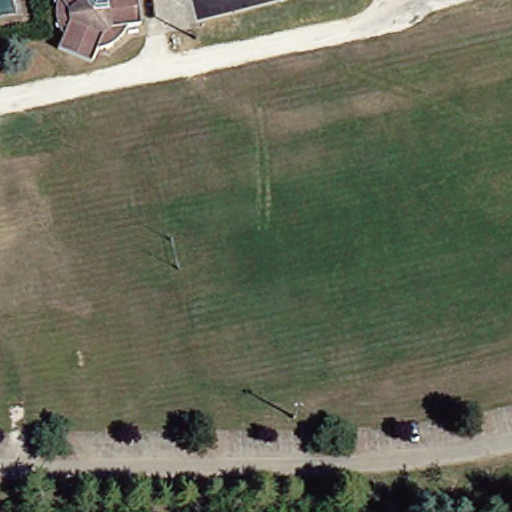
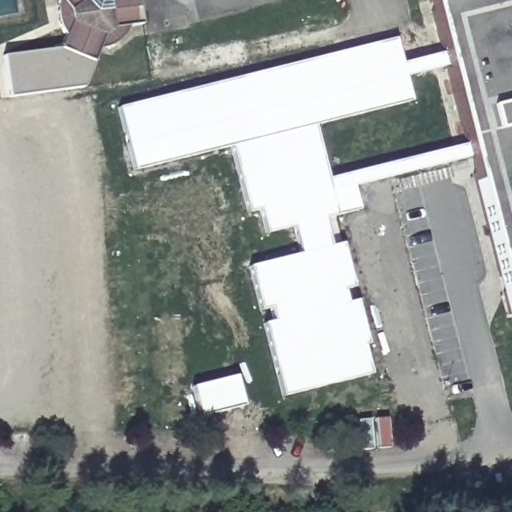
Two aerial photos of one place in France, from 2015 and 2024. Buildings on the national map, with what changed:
unchanged [(121,26),(116,35),(110,42),(101,46),(92,49),(86,61),(53,49),(59,35),(51,19),(51,11),(54,0),(133,0),(136,24),(121,26)]
new [(509,322),(425,0),(512,0),(512,321),(509,322)]
new [(400,62),(438,53),(442,68),(404,78),(410,101),(312,124),(325,178),(462,144),(466,156),(352,187),(357,209),(322,218),(328,247),(341,243),(352,287),(342,289),(345,303),(355,300),(365,344),(361,346),(368,374),(280,399),(261,324),(272,321),(269,308),(258,311),(247,267),(298,254),(292,227),(265,234),(258,210),(247,213),(230,146),(131,170),(115,108),(393,38),(400,62)]
new [(65,53),(86,61),(76,88),(8,99),(2,56),(53,49),(65,53)]
new [(240,407),(198,418),(190,387),(234,376),(240,407)]

